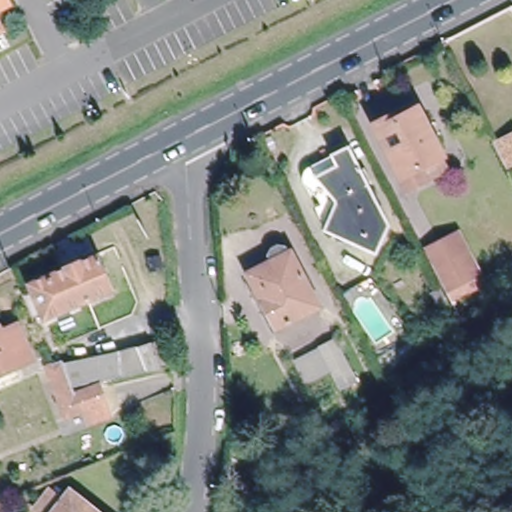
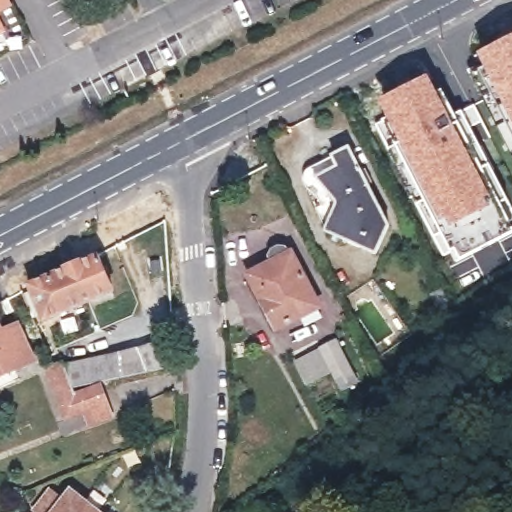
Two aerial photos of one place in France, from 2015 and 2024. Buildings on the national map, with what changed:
unchanged [(5,25),(0,28),(0,16),(5,25)]
new [(487,68),(478,53),(512,35),(512,128),(482,72),(487,68)]
new [(442,89),(512,224),(512,233),(455,259),(382,121),(389,115),(380,99),(428,72),(436,91),(442,89)]
demolished [(413,190),(381,132),(421,110),(447,155),(439,161),(443,175),(413,190)]
unchanged [(375,248),(321,226),(328,202),(310,170),(354,151),(391,219),(375,248)]
demolished [(457,278),(443,247),(460,240),(475,272),(457,278)]
unchanged [(39,312),(28,286),(95,254),(109,281),(39,312)]
unchanged [(276,330),(250,276),(291,256),(317,309),(276,330)]
unchanged [(0,374),(0,326),(3,325),(6,332),(21,325),(37,357),(0,374)]
unchanged [(331,372),(308,385),(294,361),(334,340),(360,382),(343,392),(331,372)]
unchanged [(70,352),(154,344),(166,343),(170,368),(156,368),(84,378),(70,352)]
unchanged [(96,419),(91,407),(74,414),(52,367),(67,361),(82,393),(109,383),(114,396),(119,408),(96,419)]
unchanged [(55,487),(65,497),(75,486),(103,512),(42,512),(37,508),(55,487)]

